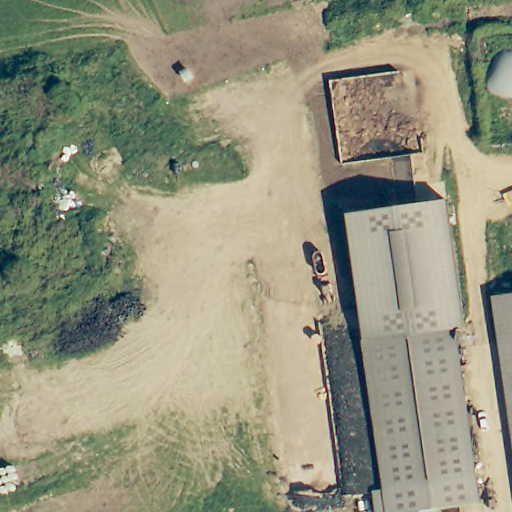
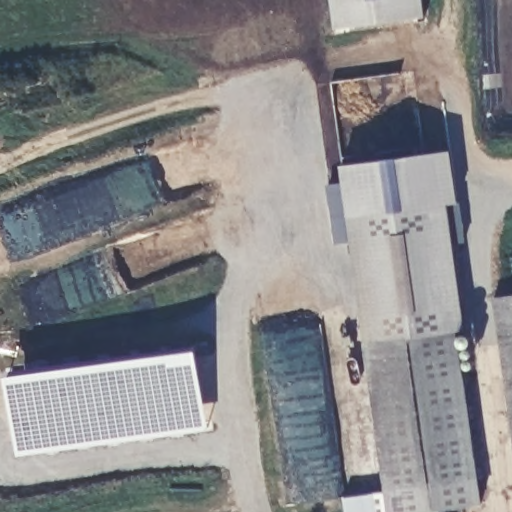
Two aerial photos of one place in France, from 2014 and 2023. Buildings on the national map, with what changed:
new [(331,0),(423,0),(426,16),(335,28),(331,0)]
unchanged [(451,149),(464,332),(454,333),(479,509),(457,512),(375,512),(373,496),(384,494),(364,345),(335,158),(451,149)]
unchanged [(493,301),(512,298),(512,437),(493,301)]
new [(194,350),(205,432),(17,458),(6,376),(194,350)]
new [(376,512),(344,512),(342,500),(374,496),(376,512)]

